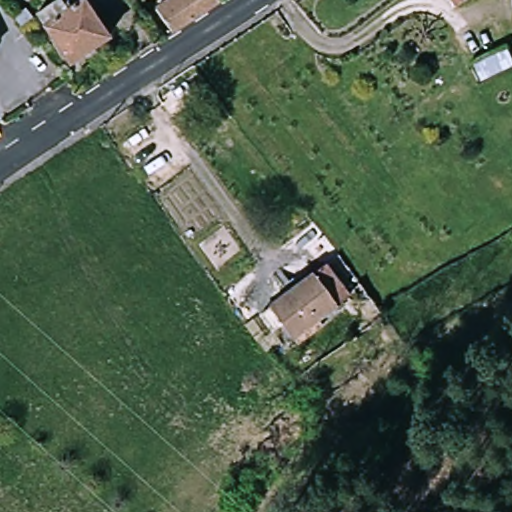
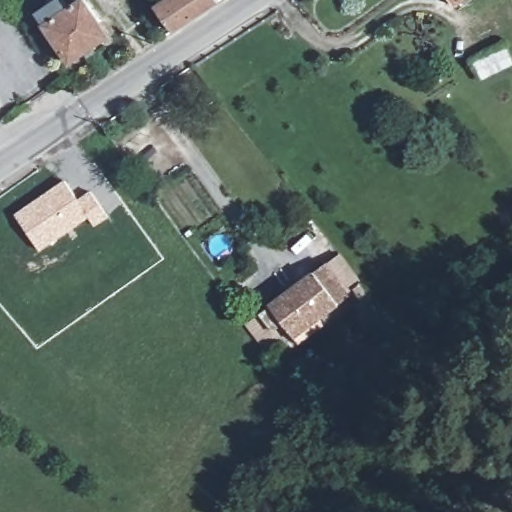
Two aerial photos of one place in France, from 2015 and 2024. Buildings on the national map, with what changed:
unchanged [(155,7),(166,0),(216,0),(172,29),(155,7)]
unchanged [(460,0),(469,0),(463,4),(460,0)]
unchanged [(65,10),(73,5),(78,13),(86,8),(106,39),(69,63),(38,18),(60,3),(65,10)]
unchanged [(512,59),(512,66),(484,79),(474,62),(507,47),(512,59)]
new [(78,199),(91,191),(109,217),(96,227),(89,218),(40,251),(15,214),(65,180),(78,199)]
unchanged [(260,309),(270,303),(326,264),(345,292),(289,329),(284,322),(273,329),(260,309)]

